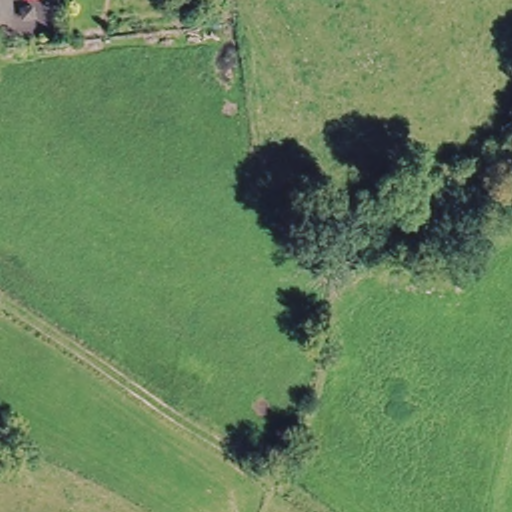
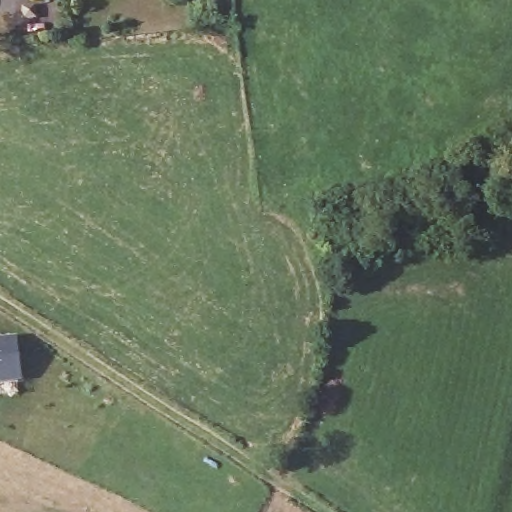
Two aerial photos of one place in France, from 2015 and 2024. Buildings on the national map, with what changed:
new [(17,378),(0,380),(0,340),(13,338),(17,378)]

